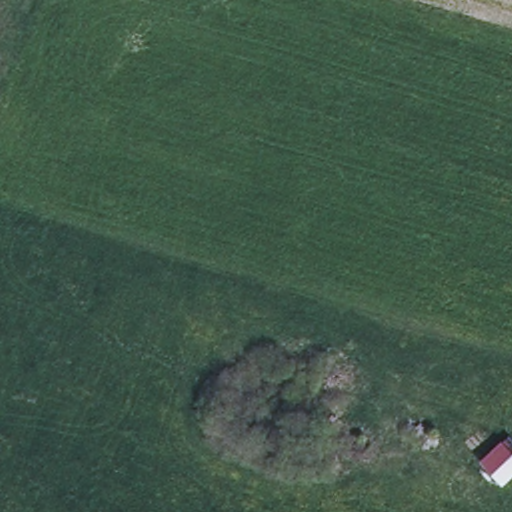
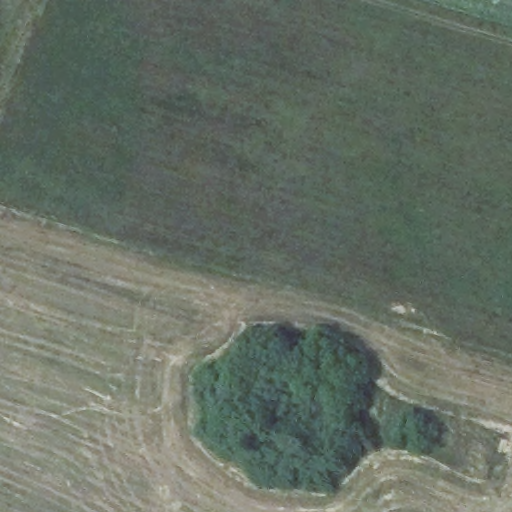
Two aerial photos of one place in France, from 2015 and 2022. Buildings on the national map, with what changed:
unchanged [(491,472),(481,460),(502,441),(512,453),(512,471),(500,482),(491,472)]

